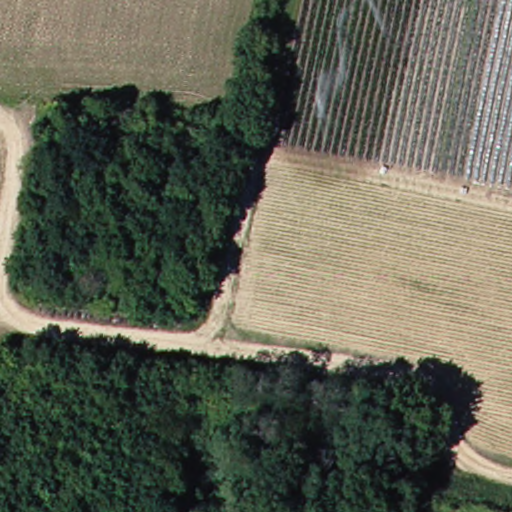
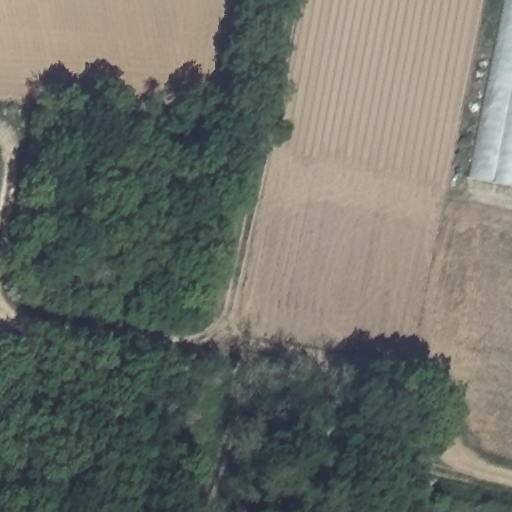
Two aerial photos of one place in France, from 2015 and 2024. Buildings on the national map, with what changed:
new [(467,178),(503,0),(512,0),(512,186),(467,178)]

